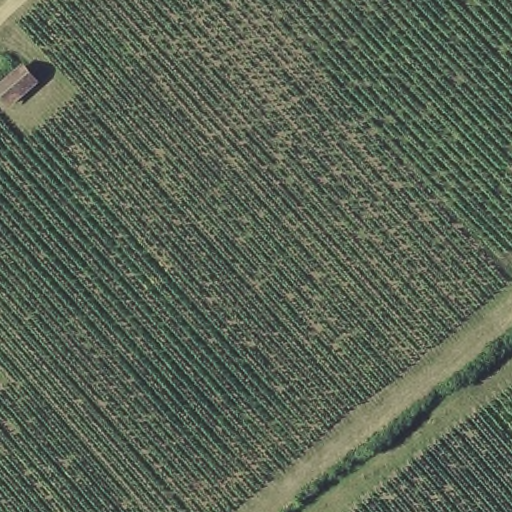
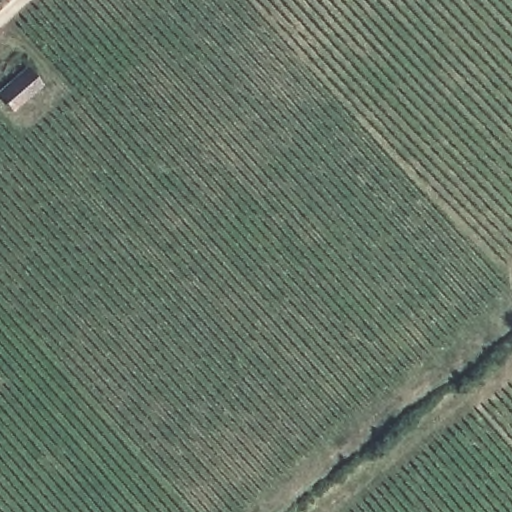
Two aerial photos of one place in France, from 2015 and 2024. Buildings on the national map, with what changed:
unchanged [(0,88),(27,62),(45,85),(14,112),(0,97),(0,88)]

